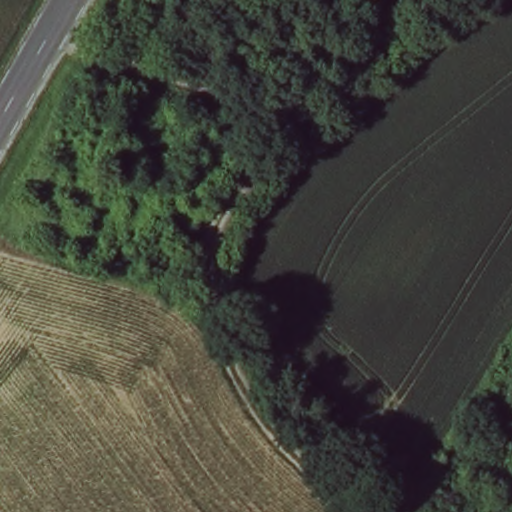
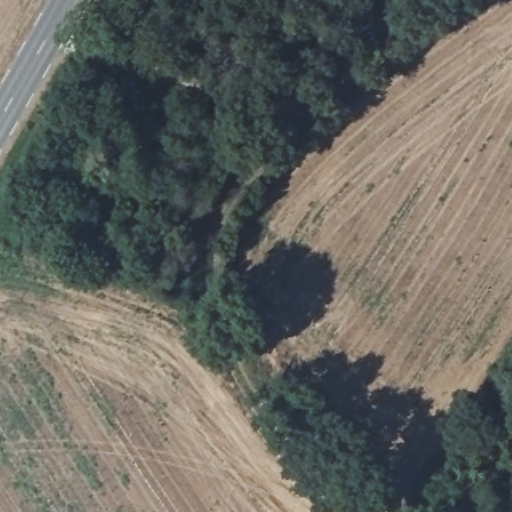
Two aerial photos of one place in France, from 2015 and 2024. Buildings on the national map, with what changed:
[]

